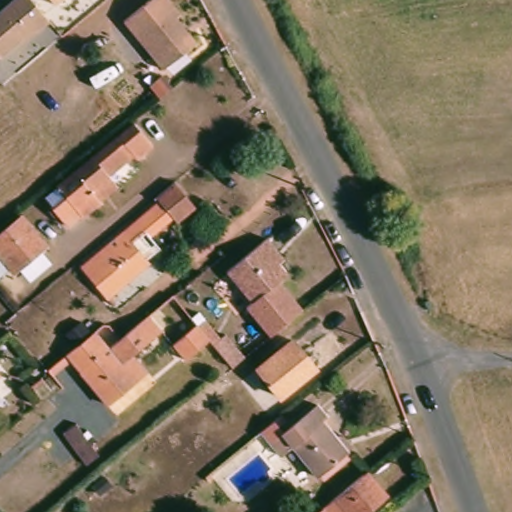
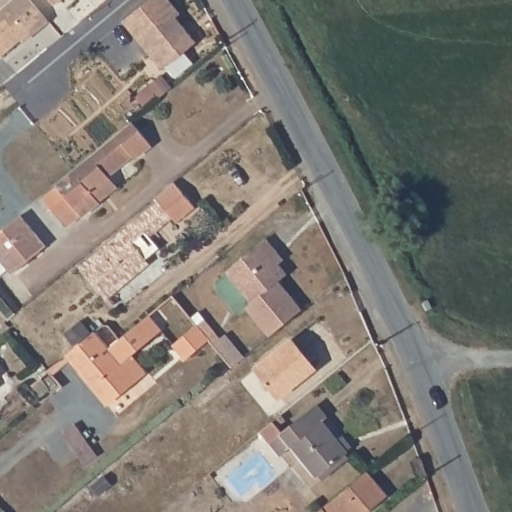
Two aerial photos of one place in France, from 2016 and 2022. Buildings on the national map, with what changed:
unchanged [(3,13),(19,0),(29,0),(47,23),(23,44),(20,41),(0,58),(0,11),(1,10),(3,13)]
unchanged [(50,0),(62,0),(55,6),(50,0)]
unchanged [(168,0),(181,15),(177,20),(195,44),(162,69),(123,22),(150,0),(168,0)]
unchanged [(145,148),(130,160),(127,156),(85,192),(95,203),(78,217),(53,186),(68,173),(126,125),(145,148)]
unchanged [(159,197),(156,194),(174,178),(195,203),(177,218),(172,213),(148,232),(145,228),(131,238),(128,234),(112,247),(107,240),(159,197)]
unchanged [(20,217),(46,247),(27,262),(13,274),(6,264),(0,269),(0,233),(3,231),(20,217)]
unchanged [(112,247),(128,234),(131,238),(149,259),(108,293),(81,261),(107,240),(112,247)]
unchanged [(252,303),(226,272),(266,239),(276,251),(283,259),(278,263),(287,274),(278,280),(302,310),(270,337),(246,307),(252,303)]
unchanged [(134,381),(106,404),(66,354),(95,332),(108,349),(124,335),(149,314),(162,331),(132,354),(146,372),(134,381)]
unchanged [(198,325),(210,340),(185,360),(173,346),(198,325)]
unchanged [(214,344),(225,334),(244,358),(233,368),(214,344)]
unchanged [(286,341),(308,369),(275,396),(252,369),(286,341)]
unchanged [(48,375),(50,377),(56,384),(50,389),(43,379),(48,375)]
unchanged [(352,447),(346,452),(317,476),(292,446),(280,457),(270,444),(260,431),(271,422),(282,434),(317,406),(326,418),(322,422),(337,440),(342,436),(352,447)]
unchanged [(76,424),(98,454),(85,463),(64,433),(76,424)]
unchanged [(387,491),(362,512),(330,512),(313,512),(319,507),(367,467),(387,491)]

